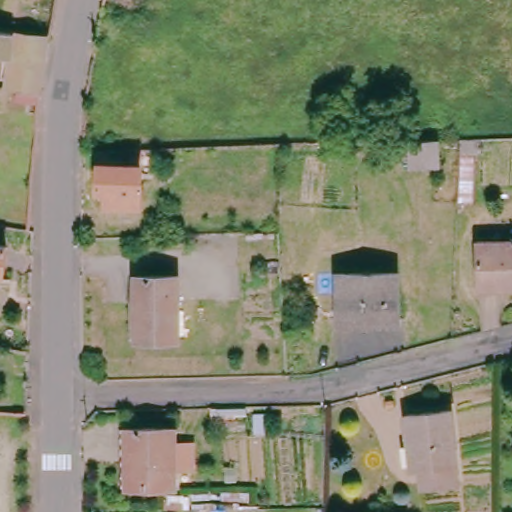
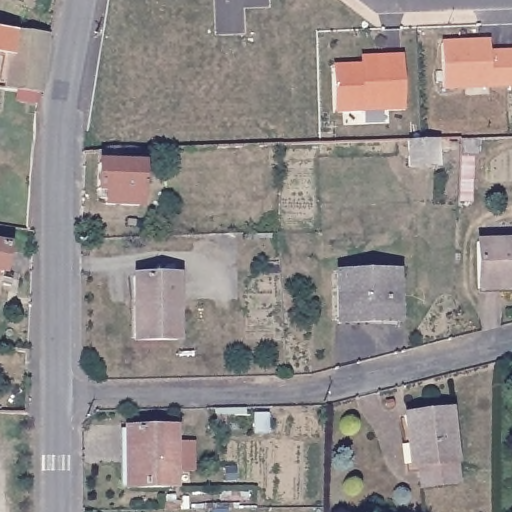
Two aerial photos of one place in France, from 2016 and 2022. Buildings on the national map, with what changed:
demolished [(101,3),(101,0),(183,0),(180,16),(101,3)]
unchanged [(35,96),(0,92),(0,81),(5,56),(0,56),(0,33),(43,38),(35,96)]
new [(489,42),(490,54),(512,53),(512,85),(490,86),(490,80),(466,81),(466,86),(443,88),(442,44),(489,42)]
new [(361,59),(384,58),(401,58),(403,108),(335,111),(334,68),(361,66),(361,59)]
unchanged [(133,149),(130,207),(96,207),(96,192),(88,192),(89,150),(133,149)]
unchanged [(18,246),(0,248),(0,222),(21,224),(18,246)]
unchanged [(512,241),(512,287),(473,287),(471,242),(512,241)]
unchanged [(388,319),(328,321),(328,275),(388,273),(388,319)]
unchanged [(172,341),(126,341),(128,278),(173,278),(172,341)]
unchanged [(447,409),(452,460),(407,466),(401,414),(447,409)]
unchanged [(184,446),(185,471),(169,471),(170,487),(121,489),(120,431),(168,429),(168,446),(184,446)]

